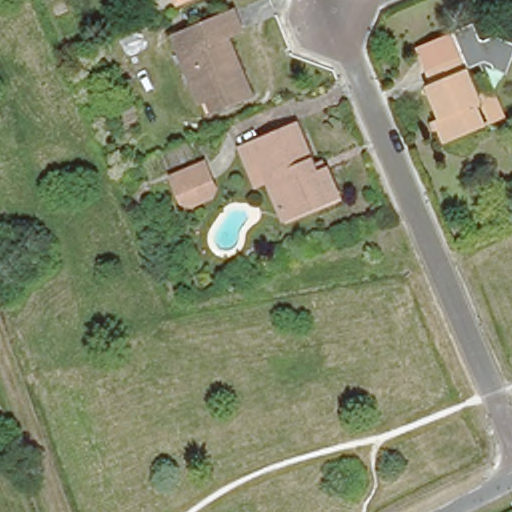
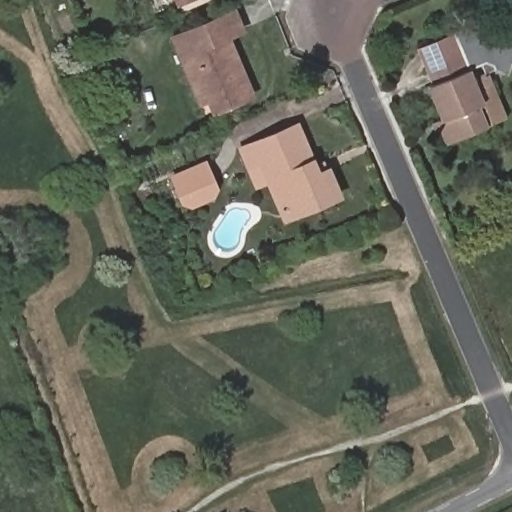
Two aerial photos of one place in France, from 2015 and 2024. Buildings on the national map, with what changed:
unchanged [(179,2),(178,0),(185,0),(179,2)]
unchanged [(213,98),(206,101),(179,39),(239,13),(247,31),(232,37),(247,73),(257,96),(252,98),(232,107),(220,112),(213,98)]
unchanged [(484,40),(497,27),(512,38),(512,57),(500,76),(508,112),(448,137),(415,45),(475,16),(484,40)]
unchanged [(262,164),(252,169),(242,147),(253,142),(297,125),(318,174),(329,170),(332,177),(340,196),(317,206),(287,219),(283,212),(262,164)]
unchanged [(183,213),(169,177),(204,162),(219,198),(183,213)]

